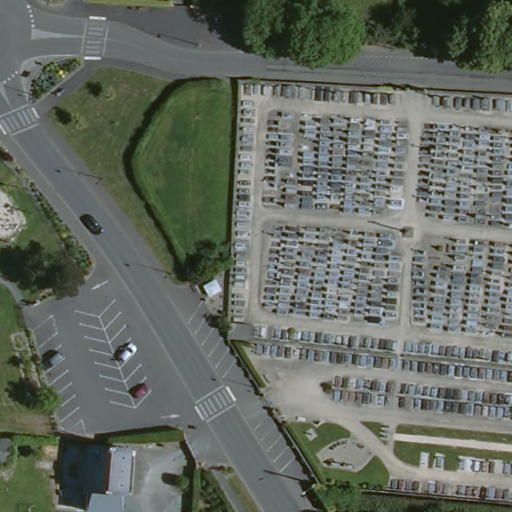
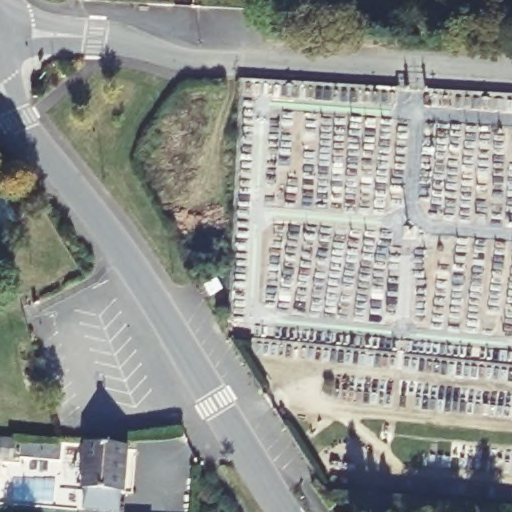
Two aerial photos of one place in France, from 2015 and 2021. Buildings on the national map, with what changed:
unchanged [(213,272),(218,280),(210,285),(205,277),(213,272)]
unchanged [(0,429),(17,430),(17,434),(16,442),(0,441),(0,429)]
unchanged [(116,484),(115,501),(89,500),(90,482),(80,482),(82,437),(122,439),(121,458),(120,464),(120,470),(119,477),(119,482),(119,484),(116,484)]

